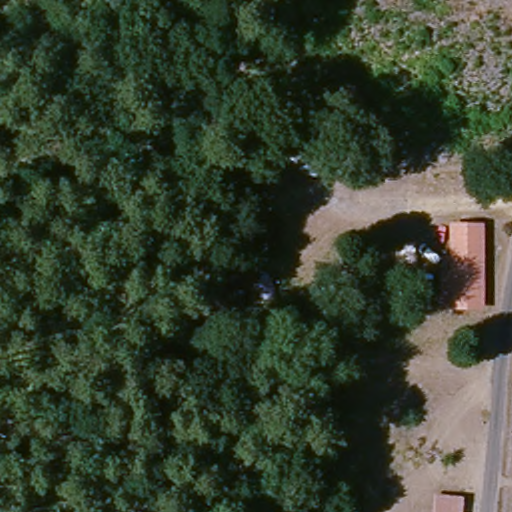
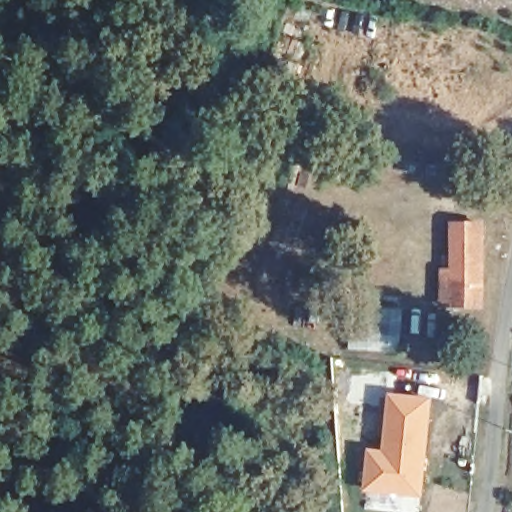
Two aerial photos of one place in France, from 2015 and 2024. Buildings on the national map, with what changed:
unchanged [(448,300),(451,229),(474,230),(471,301),(448,300)]
unchanged [(297,283),(300,262),(342,269),(338,291),(297,283)]
new [(436,397),(423,498),(365,491),(367,449),(383,450),(388,393),(436,397)]
unchanged [(453,493),(453,512),(429,512),(430,492),(453,493)]

